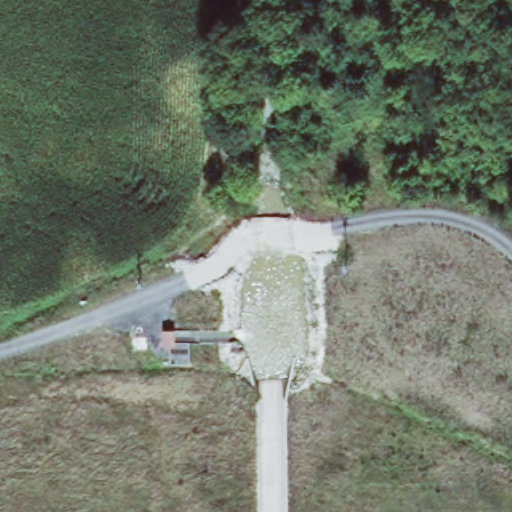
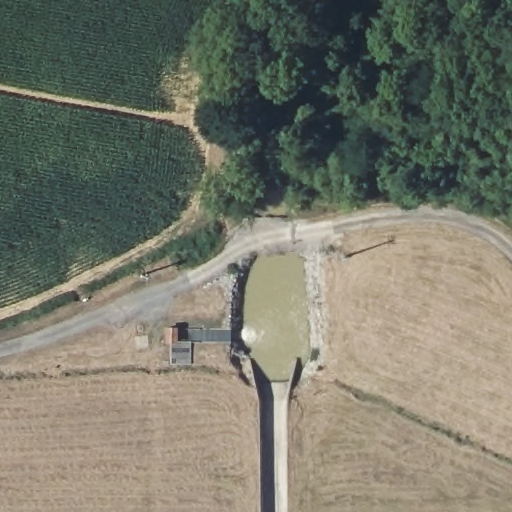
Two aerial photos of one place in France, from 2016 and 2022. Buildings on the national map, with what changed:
unchanged [(238,181),(239,200),(222,200),(222,182),(238,181)]
unchanged [(179,326),(179,341),(166,341),(168,326),(179,326)]

